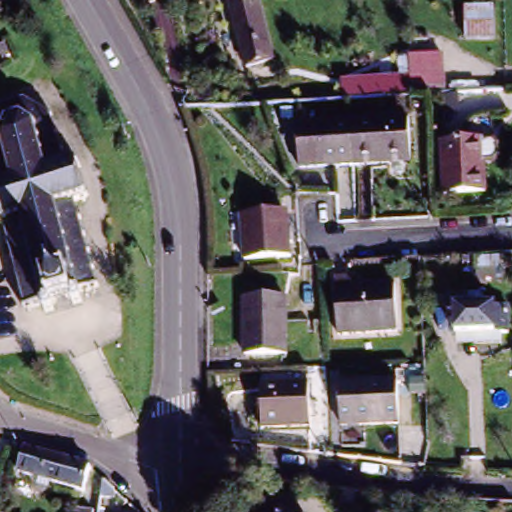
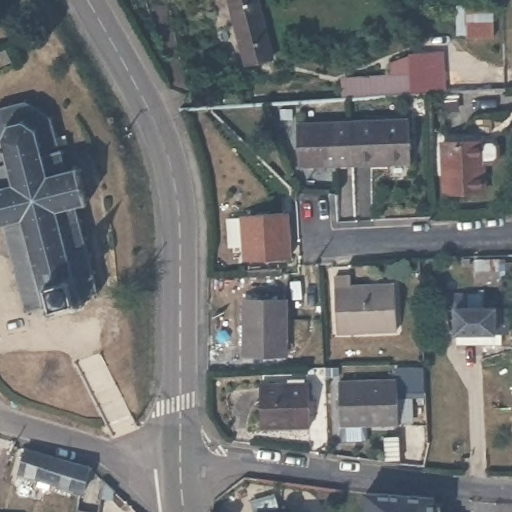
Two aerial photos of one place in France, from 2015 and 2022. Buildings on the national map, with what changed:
unchanged [(272,60),(246,68),(228,0),(255,0),(272,60)]
unchanged [(465,14),(494,12),(494,42),(466,44),(465,14)]
unchanged [(14,50),(20,60),(12,65),(5,55),(14,50)]
unchanged [(444,60),(446,97),(427,98),(402,100),(399,67),(399,63),(444,60)]
unchanged [(402,100),(352,102),(350,102),(342,104),(342,84),(390,80),(390,68),(399,67),(402,100)]
unchanged [(45,320),(44,311),(32,315),(33,317),(29,318),(29,316),(27,316),(26,314),(24,315),(22,311),(25,310),(22,296),(19,297),(18,293),(21,293),(18,280),(15,281),(14,276),(17,276),(14,265),(11,265),(10,260),(13,259),(10,247),(7,248),(7,244),(10,243),(6,227),(0,228),(0,111),(3,113),(12,111),(11,107),(15,106),(16,110),(25,108),(26,104),(30,104),(29,109),(40,114),(42,111),(45,113),(44,116),(51,120),(53,118),(56,120),(53,125),(56,135),(59,135),(60,139),(57,140),(60,152),(62,152),(63,155),(66,154),(67,158),(64,159),(69,174),(74,172),(74,169),(77,168),(78,171),(82,170),(84,175),(81,176),(87,200),(90,199),(91,203),(89,204),(90,206),(87,207),(89,210),(85,211),(84,207),(77,209),(82,225),(86,225),(87,229),(84,230),(87,240),(90,239),(90,244),(87,245),(90,257),(94,256),(95,260),(91,261),(94,274),(97,272),(99,276),(95,277),(99,293),(102,292),(104,296),(100,296),(100,299),(95,300),(95,298),(81,302),(84,311),(85,316),(47,325),(45,320)]
unchanged [(353,126),(353,125),(412,120),(413,164),(355,169),(353,126)]
unchanged [(301,170),(300,129),(353,126),(355,169),(301,170)]
unchanged [(445,145),(484,142),(494,142),(499,146),(500,158),(495,162),(484,163),(485,195),(445,196),(445,145)]
unchanged [(245,220),(289,218),(290,247),(294,247),(295,263),(247,265),(245,220)]
unchanged [(480,260),(510,259),(511,278),(480,280),(480,260)]
unchanged [(337,278),(354,278),(355,292),(380,290),(380,286),(397,285),(399,332),(339,335),(337,278)]
unchanged [(505,335),(505,346),(480,345),(460,345),(462,334),(459,333),(460,308),(455,307),(455,294),(469,294),(490,295),(490,309),(500,309),(501,316),(512,316),(512,335),(505,335)]
unchanged [(245,302),(289,301),(290,356),(247,357),(245,302)]
unchanged [(340,385),(399,384),(400,426),(342,428),(340,385)]
unchanged [(260,387),(309,386),(310,428),(262,430),(260,387)]
unchanged [(37,490),(38,485),(18,479),(25,455),(89,471),(83,496),(49,487),(47,493),(37,490)]
unchanged [(110,498),(100,496),(104,479),(112,487),(110,498)]
demolished [(358,512),(336,512),(338,489),(361,492),(358,512)]
new [(435,497),(435,512),(367,512),(367,492),(435,497)]

